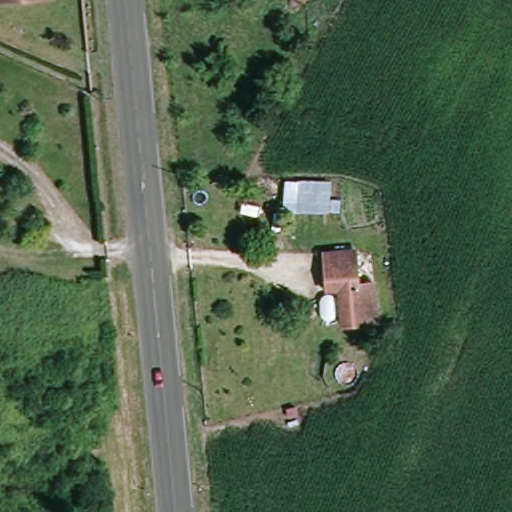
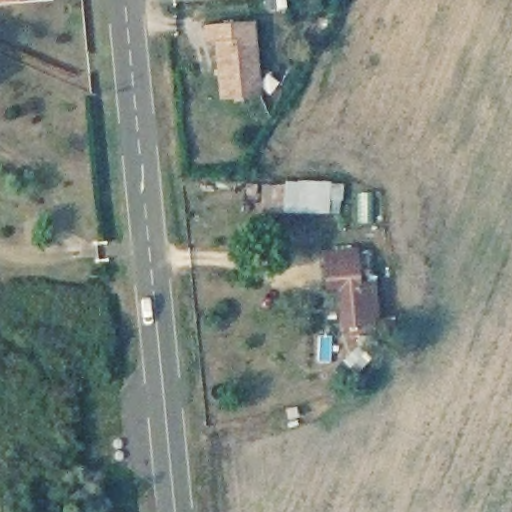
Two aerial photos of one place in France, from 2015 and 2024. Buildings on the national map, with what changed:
new [(262,94),(220,99),(213,40),(204,40),(203,26),(255,20),(262,94)]
new [(329,180),(330,214),(285,212),(284,181),(329,180)]
unchanged [(380,321),(342,325),(339,290),(328,290),(324,252),(356,250),(359,285),(376,283),(380,321)]

